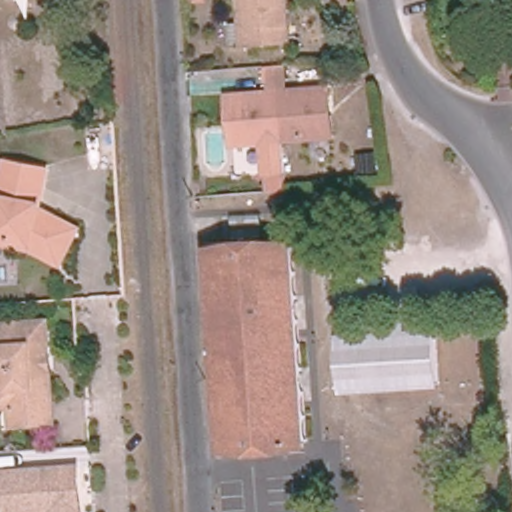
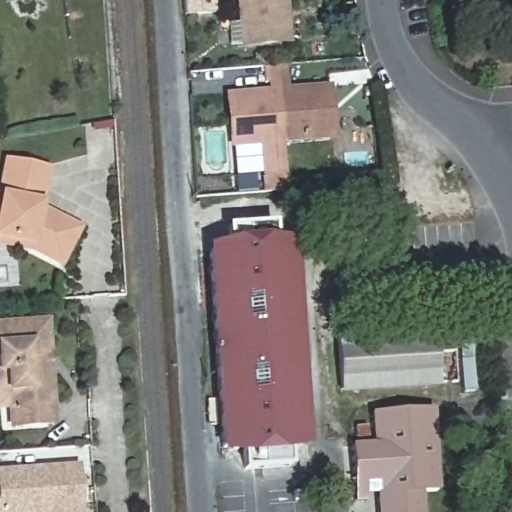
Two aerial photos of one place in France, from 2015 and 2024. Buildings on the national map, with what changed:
new [(212,14),(184,15),(183,0),(211,0),(212,14)]
unchanged [(289,41),(243,45),(242,44),(230,44),(229,25),(241,24),(239,0),(285,0),(289,41)]
unchanged [(268,191),(265,177),(259,177),(258,146),(231,149),(228,92),(269,90),(269,66),(290,66),(291,89),(334,86),(337,141),(283,145),(283,190),(268,191)]
unchanged [(55,260),(26,245),(0,239),(0,158),(1,156),(43,165),(35,202),(75,223),(55,260)]
unchanged [(233,450),(223,450),(209,249),(219,249),(293,244),(294,254),(306,435),(307,445),(233,450)]
unchanged [(49,418),(6,420),(5,402),(0,402),(0,319),(42,316),(49,418)]
unchanged [(439,385),(342,390),(338,337),(435,331),(439,385)]
new [(422,491),(423,512),(377,512),(376,483),(365,484),(366,500),(354,501),(350,445),(372,443),(370,411),(434,408),(439,490),(422,491)]
unchanged [(76,512),(0,512),(0,471),(73,465),(76,512)]

